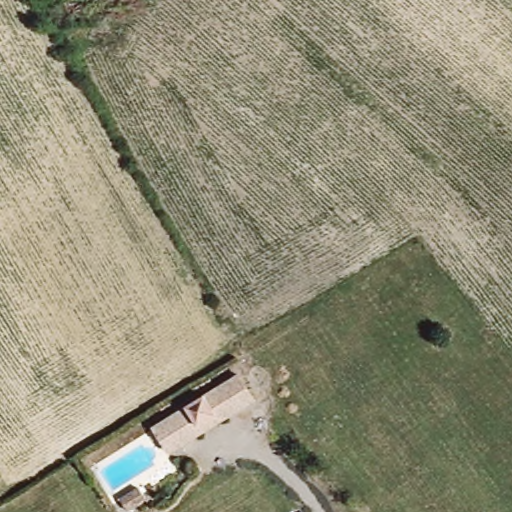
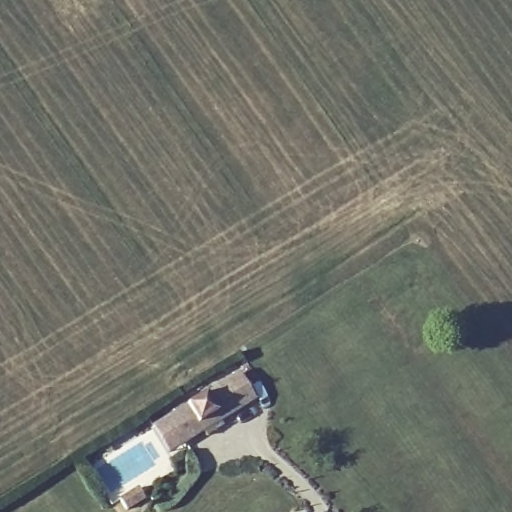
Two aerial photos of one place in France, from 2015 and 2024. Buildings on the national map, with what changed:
unchanged [(240,376),(257,405),(170,460),(152,431),(240,376)]

